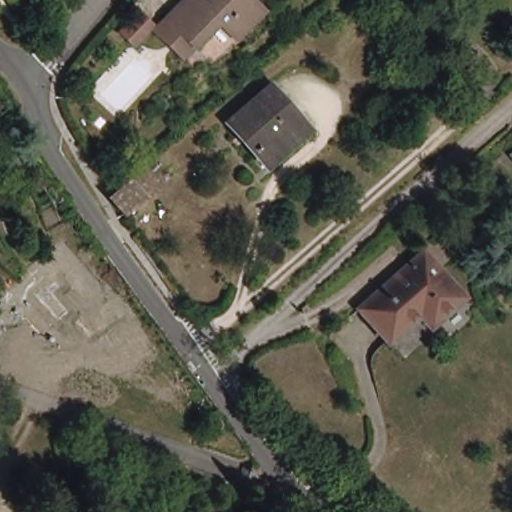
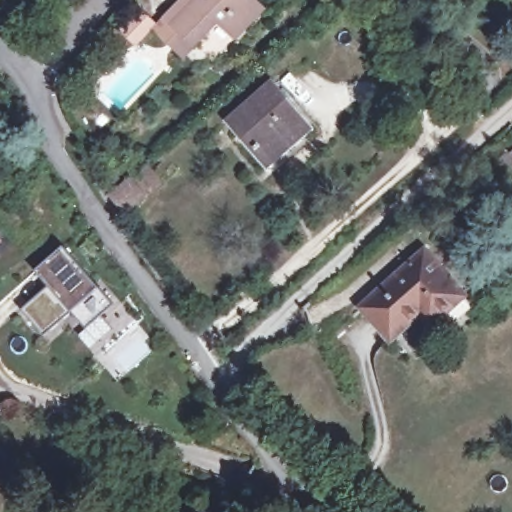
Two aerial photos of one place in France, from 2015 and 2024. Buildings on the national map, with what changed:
unchanged [(158,30),(168,18),(186,0),(252,0),(262,10),(237,36),(220,20),(196,43),(185,55),(158,30)]
unchanged [(141,14),(153,26),(136,44),(125,33),(141,14)]
unchanged [(272,149),(259,160),(220,117),(261,80),(297,120),(301,124),(272,149)]
unchanged [(162,183),(126,213),(113,197),(148,167),(162,183)]
new [(3,240),(0,244),(0,237),(3,240)]
unchanged [(428,315),(417,304),(387,330),(358,298),(420,241),(460,286),(428,315)]
new [(47,286),(35,271),(63,246),(98,287),(113,304),(84,329),(70,312),(43,337),(20,310),(47,286)]

